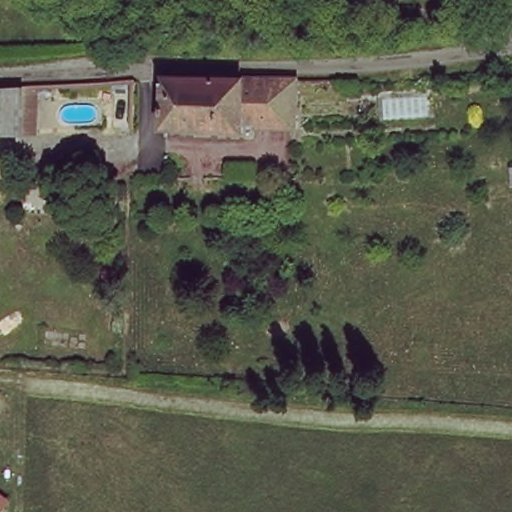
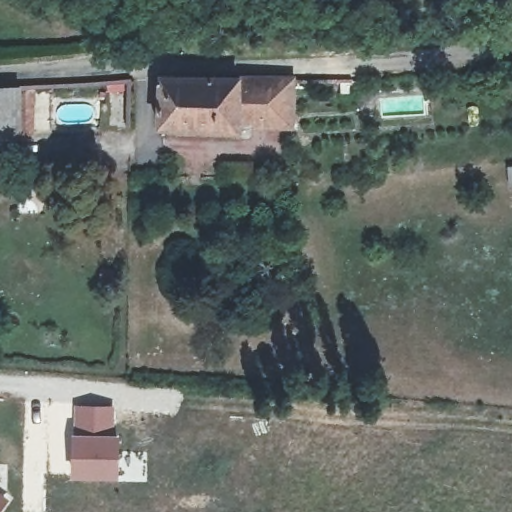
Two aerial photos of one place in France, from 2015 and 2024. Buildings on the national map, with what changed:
unchanged [(240,126),(240,135),(160,129),(162,80),(293,81),(292,128),(240,126)]
unchanged [(18,83),(18,131),(0,132),(0,84),(18,83)]
unchanged [(506,166),(512,165),(512,187),(507,188),(506,166)]
demolished [(0,198),(0,176),(15,176),(13,198),(0,198)]
new [(118,479),(70,478),(72,435),(74,406),(113,407),(111,436),(119,437),(118,479)]
unchanged [(6,500),(0,509),(0,496),(6,500)]

